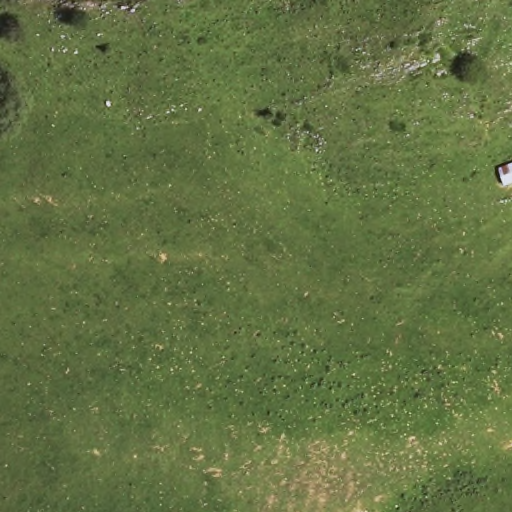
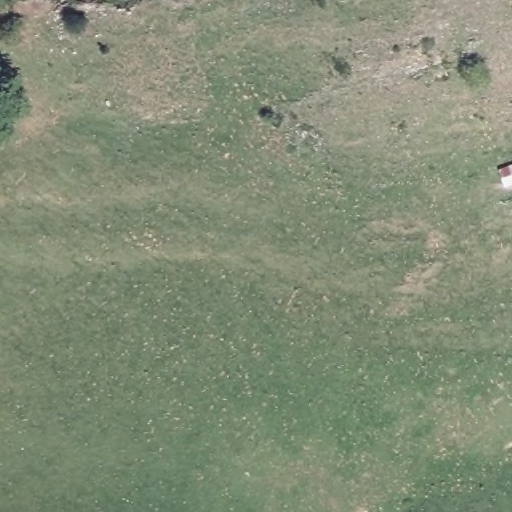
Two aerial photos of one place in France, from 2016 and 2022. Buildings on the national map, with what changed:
unchanged [(496,167),(512,162),(512,185),(504,187),(496,167)]

